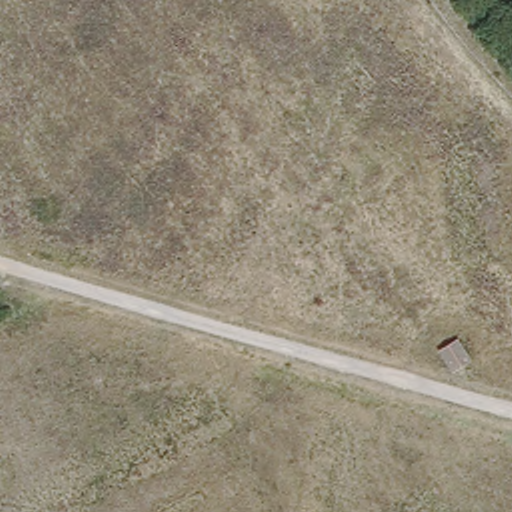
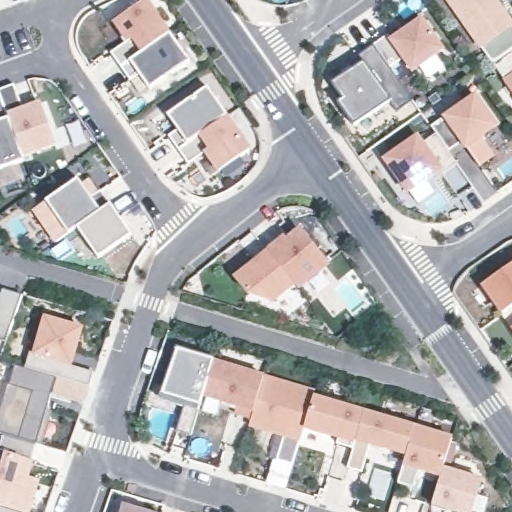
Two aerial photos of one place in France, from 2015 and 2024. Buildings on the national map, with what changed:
new [(113,23),(146,0),(147,0),(190,60),(150,88),(140,74),(132,81),(112,54),(128,45),(113,23)]
new [(506,79),(492,62),(482,45),(479,48),(447,0),(497,0),(512,21),(512,92),(503,80),(506,79)]
new [(387,31),(392,37),(421,16),(442,45),(412,67),(403,54),(390,64),(412,96),(398,106),(390,96),(355,121),(339,100),(343,96),(332,80),(362,59),(357,51),(373,40),(387,31)]
new [(208,87),(228,115),(226,116),(178,150),(168,136),(177,130),(167,115),(208,87)]
new [(7,115),(23,156),(25,161),(0,170),(0,94),(7,115)]
new [(435,134),(431,125),(475,94),(496,125),(481,136),(493,154),(478,164),(461,141),(448,150),(435,134)]
new [(39,103),(55,145),(23,156),(7,115),(39,103)]
new [(226,116),(250,149),(218,171),(205,152),(188,164),(178,150),(226,116)]
new [(431,177),(408,194),(383,159),(418,135),(424,142),(435,134),(448,150),(461,141),(465,146),(451,155),(458,165),(432,182),(431,177)]
new [(48,200),(79,180),(101,211),(110,205),(130,234),(98,257),(78,226),(68,234),(55,243),(33,210),(48,200)]
new [(284,235),(287,240),(300,227),(330,265),(298,288),(295,285),(274,302),(250,294),(235,275),(284,235)]
new [(500,313),(481,285),(512,264),(512,323),(504,311),(500,313)]
new [(2,288),(21,295),(5,340),(0,339),(0,294),(2,288)]
new [(30,352),(35,353),(45,318),(81,329),(70,366),(93,373),(89,387),(53,376),(25,368),(30,352)]
new [(512,327),(512,329),(511,328),(512,327)]
demolished [(470,360),(453,370),(440,349),(457,338),(470,360)]
new [(203,396),(200,403),(190,436),(178,432),(188,400),(163,393),(178,350),(213,361),(203,396)]
new [(213,361),(264,376),(251,418),(235,413),(237,406),(203,396),(213,361)]
new [(0,507),(0,442),(2,435),(0,434),(0,403),(10,365),(25,368),(53,376),(25,477),(36,481),(28,512),(16,512),(0,507)]
new [(251,418),(264,376),(315,391),(313,396),(304,428),(292,465),(276,460),(284,435),(250,425),(251,418)]
new [(313,396),(364,411),(353,448),(336,444),(338,438),(304,428),(313,396)]
new [(353,448),(364,411),(415,427),(406,455),(370,444),(361,473),(347,468),(353,448)]
new [(406,455),(415,427),(452,438),(440,476),(418,470),(413,488),(398,483),(406,455)]
new [(481,479),(471,512),(459,512),(433,503),(440,476),(443,468),(481,479)]
new [(123,505),(141,510),(148,512),(121,512),(123,505)]
new [(16,512),(0,512),(0,507),(16,512)]

